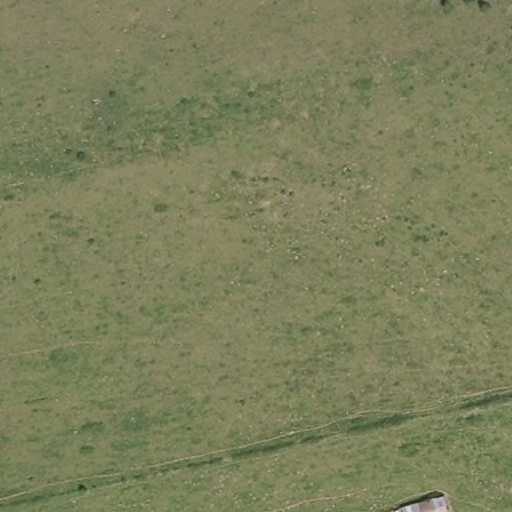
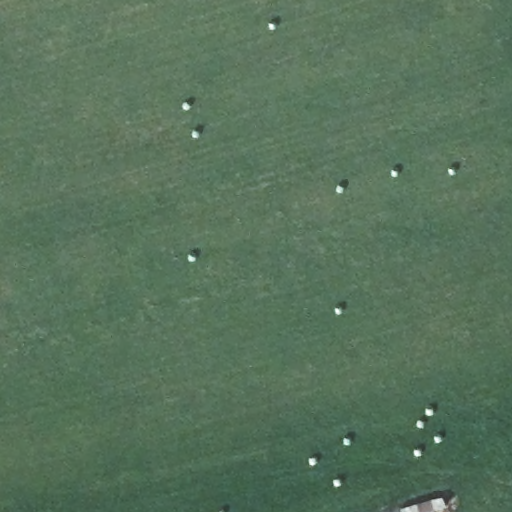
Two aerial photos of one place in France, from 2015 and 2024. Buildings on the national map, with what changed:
[]

